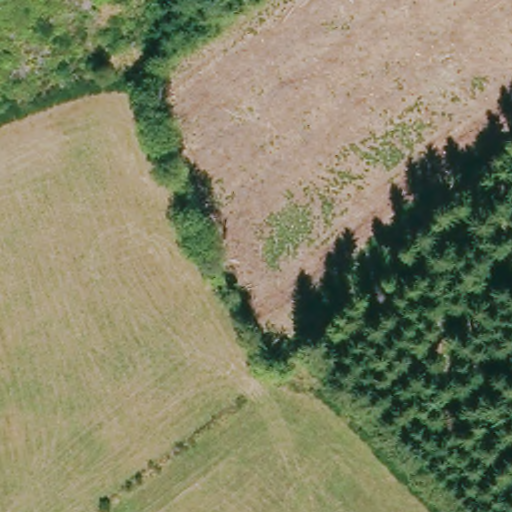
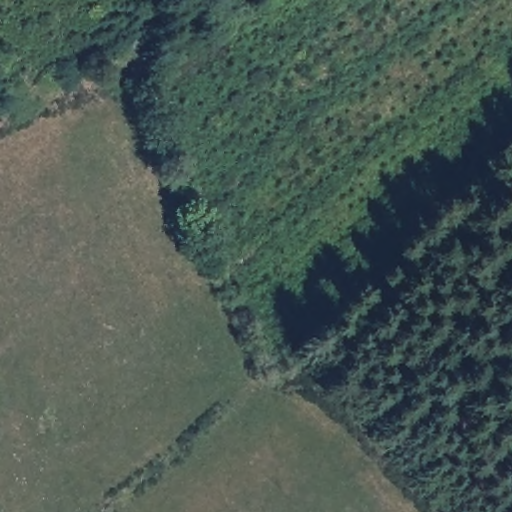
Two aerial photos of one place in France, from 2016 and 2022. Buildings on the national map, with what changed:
[]

